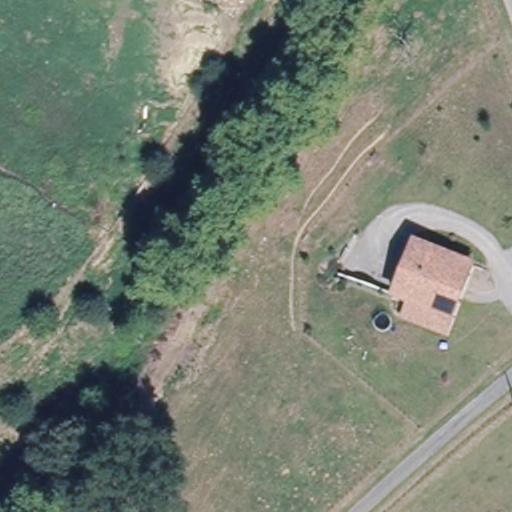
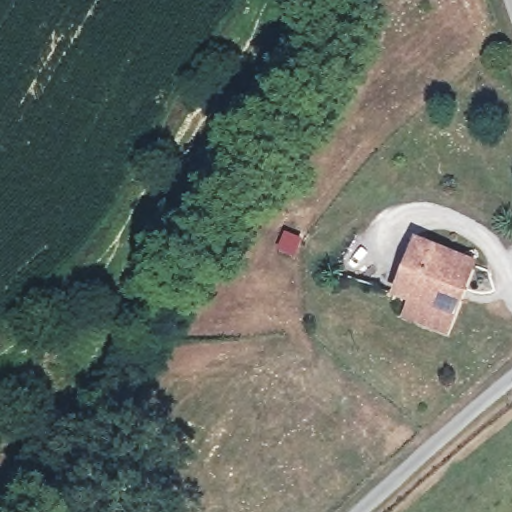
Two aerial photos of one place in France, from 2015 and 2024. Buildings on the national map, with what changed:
unchanged [(409,316),(416,299),(400,292),(422,241),(477,264),(455,316),(448,332),(409,316)]

